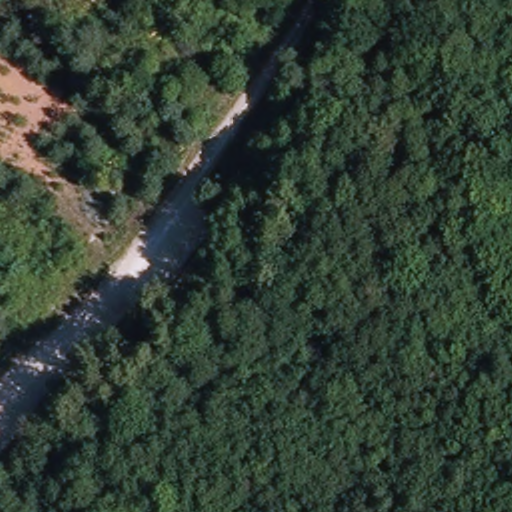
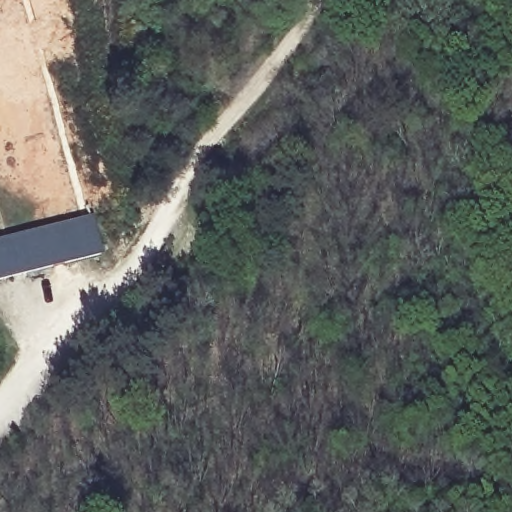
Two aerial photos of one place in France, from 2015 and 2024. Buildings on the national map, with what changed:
new [(100,254),(0,280),(0,238),(90,215),(100,254)]

